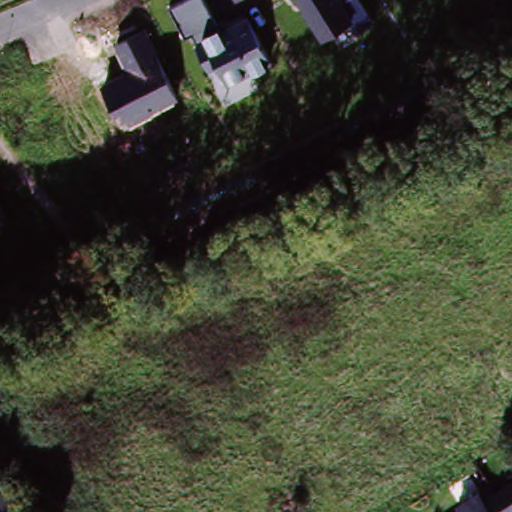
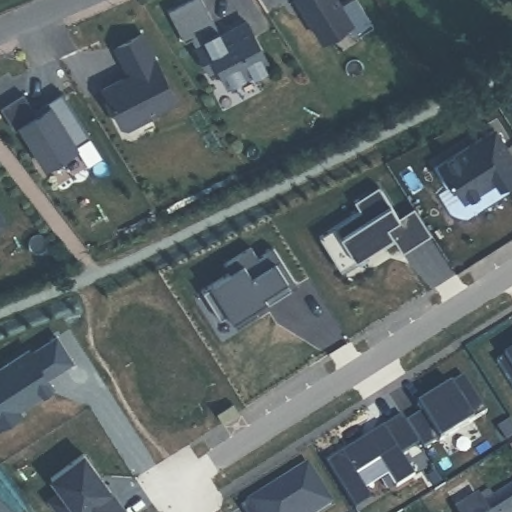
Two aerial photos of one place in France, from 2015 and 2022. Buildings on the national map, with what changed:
unchanged [(270,69),(225,91),(217,72),(207,76),(195,49),(190,38),(182,42),(167,12),(191,0),(201,0),(212,25),(200,31),(203,40),(218,33),(220,33),(247,20),(270,69)]
unchanged [(370,24),(352,36),(347,31),(321,47),(294,0),(356,0),(370,24)]
unchanged [(177,102),(120,132),(102,91),(128,78),(115,49),(141,34),(177,102)]
new [(512,160),(512,178),(497,187),(493,181),(461,201),(450,185),(448,186),(435,165),(492,128),(512,160)]
new [(363,215),(357,206),(382,190),(402,222),(417,212),(435,240),(406,258),(398,245),(387,252),(385,248),(344,274),(323,241),(363,215)]
new [(232,274),(227,265),(253,249),(260,260),(276,250),(300,287),(270,306),(267,302),(256,310),(260,316),(239,329),(230,316),(222,322),(203,293),(232,274)]
new [(30,355),(32,358),(58,342),(72,366),(47,381),(54,391),(42,399),(40,397),(32,402),(33,404),(20,413),(22,417),(0,431),(0,430),(0,374),(30,355)]
new [(512,387),(495,362),(512,351),(512,387)]
new [(420,413),(415,406),(427,398),(433,395),(462,376),(485,413),(438,442),(437,440),(422,450),(405,423),(420,413)]
new [(400,416),(418,444),(400,456),(412,477),(395,488),(377,461),(354,476),(370,500),(353,511),(324,464),(400,416)]
unchanged [(512,443),(512,452),(508,446),(512,443)]
new [(50,479),(82,454),(123,510),(121,512),(57,512),(47,500),(59,491),(50,479)]
new [(330,504),(316,512),(242,512),(239,508),(305,466),(330,504)]
unchanged [(512,512),(474,512),(512,488),(512,512)]
unchanged [(9,512),(0,512),(0,503),(9,512)]

